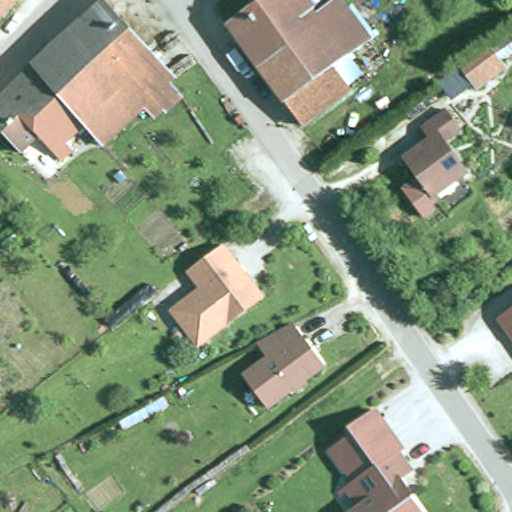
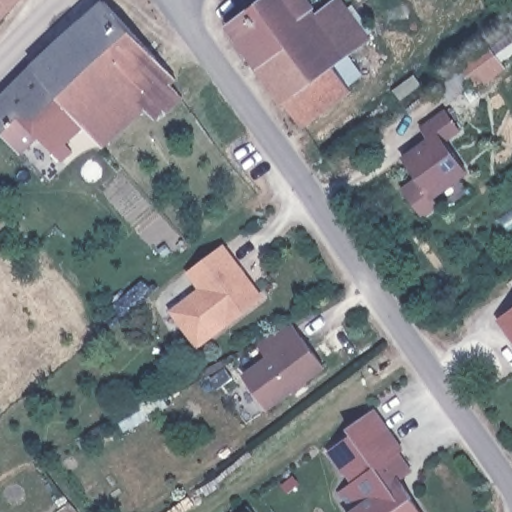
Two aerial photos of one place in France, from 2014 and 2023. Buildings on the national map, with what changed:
unchanged [(4,22),(0,26),(0,0),(24,0),(4,22)]
unchanged [(92,122),(40,63),(62,41),(109,0),(181,78),(177,83),(187,97),(171,112),(169,110),(160,117),(150,107),(110,143),(92,122)]
unchanged [(377,33),(340,62),(357,84),(308,120),(289,94),(287,95),(232,20),(257,0),(350,0),(377,33)]
unchanged [(489,45),(491,49),(512,35),(512,53),(500,61),(502,65),(475,83),(462,64),(489,45)]
unchanged [(92,122),(70,141),(77,150),(67,158),(47,135),(27,152),(0,123),(0,105),(40,63),(92,122)]
unchanged [(429,136),(421,125),(445,108),(460,128),(445,138),(467,168),(431,193),(404,156),(429,136)]
unchanged [(177,168),(181,174),(177,176),(174,170),(177,168)]
unchanged [(197,350),(171,317),(200,294),(187,276),(204,263),(220,250),(260,302),(197,350)]
unchanged [(505,315),(512,311),(512,325),(505,315)]
unchanged [(309,381),(297,390),(295,388),(270,407),(250,378),(252,372),(272,357),(260,342),(296,323),(327,366),(308,380),(309,381)]
unchanged [(343,492),(357,482),(350,471),(347,472),(332,450),(356,434),(352,428),(379,410),(406,449),(401,453),(414,471),(393,486),(405,503),(412,498),(424,512),(354,512),(356,510),(343,492)]

